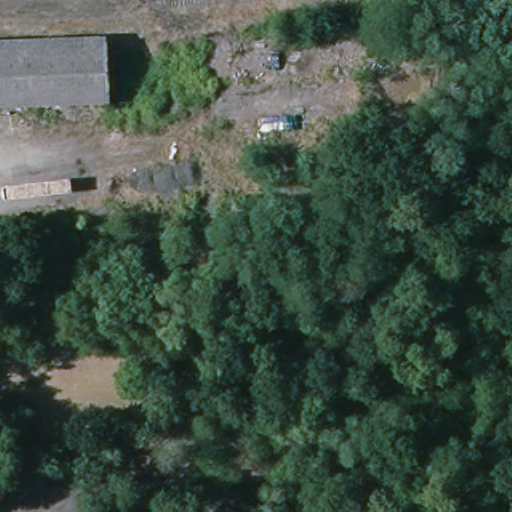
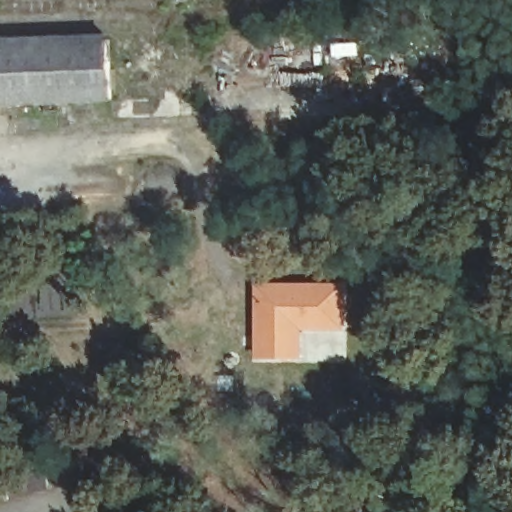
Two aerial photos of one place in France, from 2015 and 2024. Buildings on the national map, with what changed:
unchanged [(104,99),(0,103),(0,38),(98,36),(104,99)]
new [(254,360),(254,283),(344,282),(343,331),(301,331),(301,360),(254,360)]

